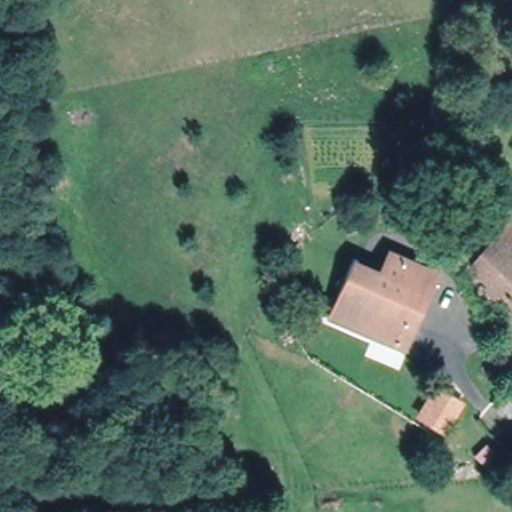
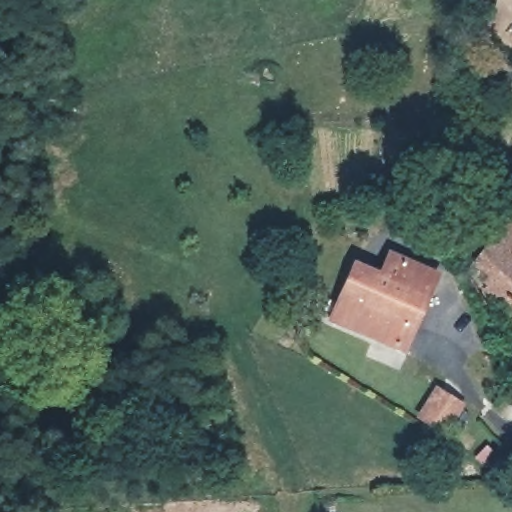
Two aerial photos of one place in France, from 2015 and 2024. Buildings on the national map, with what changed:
unchanged [(509,221),(512,223),(512,298),(504,291),(501,295),(490,285),(494,282),(473,263),(509,221)]
unchanged [(404,345),(332,314),(356,258),(382,269),(391,248),(422,262),(437,268),(404,345)]
unchanged [(438,391),(461,405),(446,430),(423,416),(438,391)]

